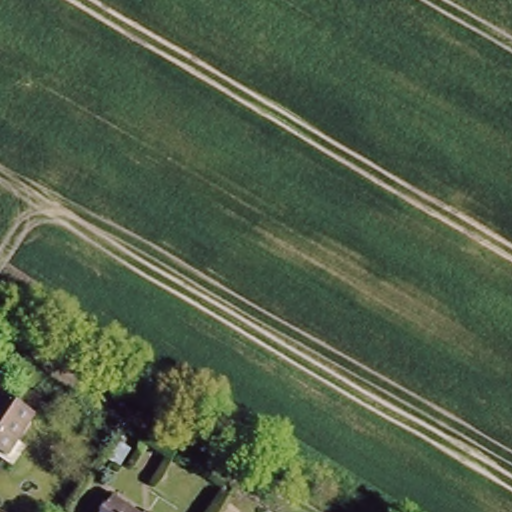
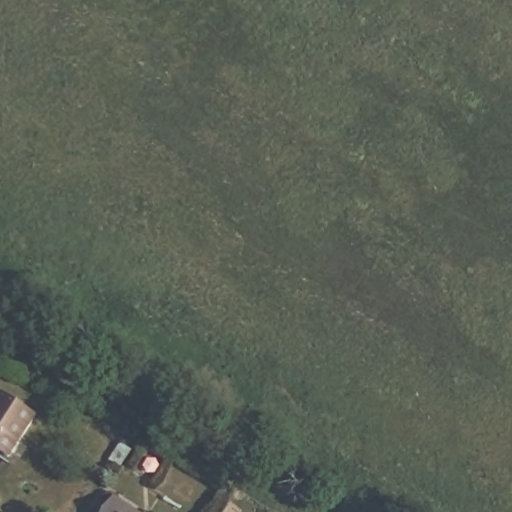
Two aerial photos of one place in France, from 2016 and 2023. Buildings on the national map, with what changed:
unchanged [(0,398),(4,392),(35,412),(6,456),(0,452),(0,398)]
unchanged [(116,497),(140,512),(106,512),(116,497)]

